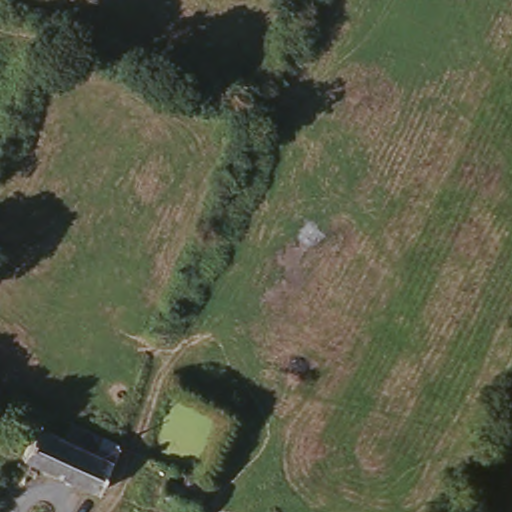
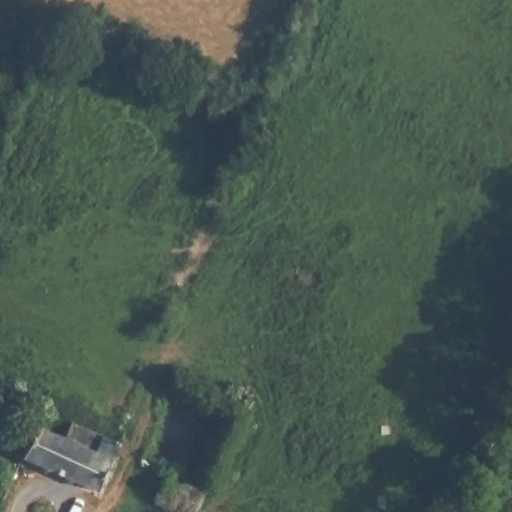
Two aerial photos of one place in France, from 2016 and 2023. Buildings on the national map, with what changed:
unchanged [(31,434),(58,448),(66,431),(113,453),(123,457),(119,467),(111,464),(94,498),(20,463),(31,434)]
unchanged [(171,471),(206,486),(197,506),(195,512),(181,512),(159,503),(171,471)]

